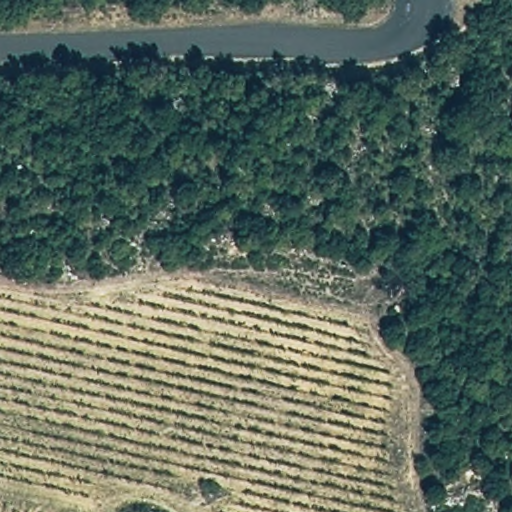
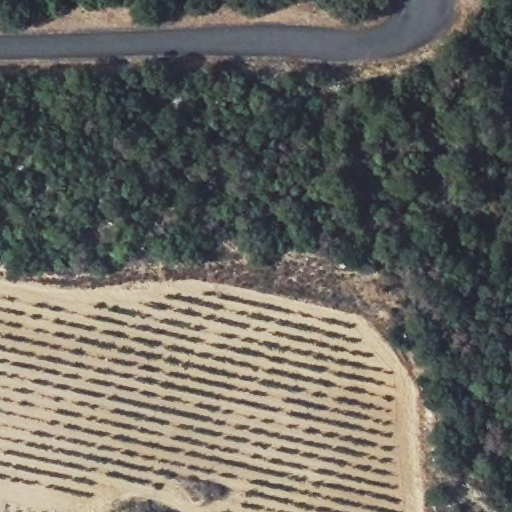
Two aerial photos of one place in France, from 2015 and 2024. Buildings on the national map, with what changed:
[]

